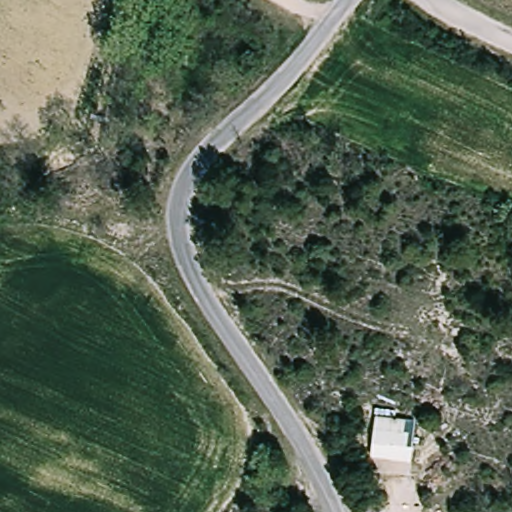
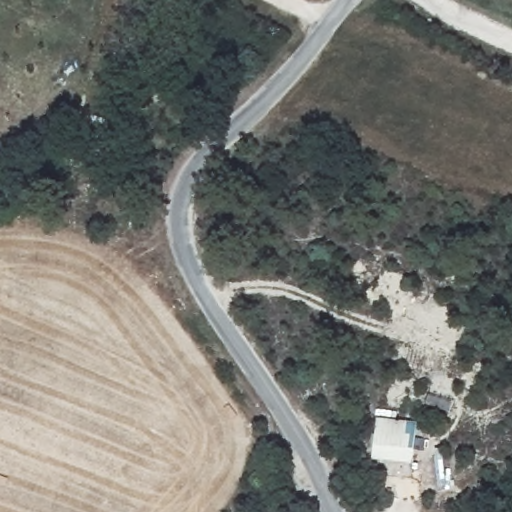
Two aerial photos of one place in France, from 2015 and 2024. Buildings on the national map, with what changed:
unchanged [(420,420),(415,463),(373,459),(378,416),(420,420)]

